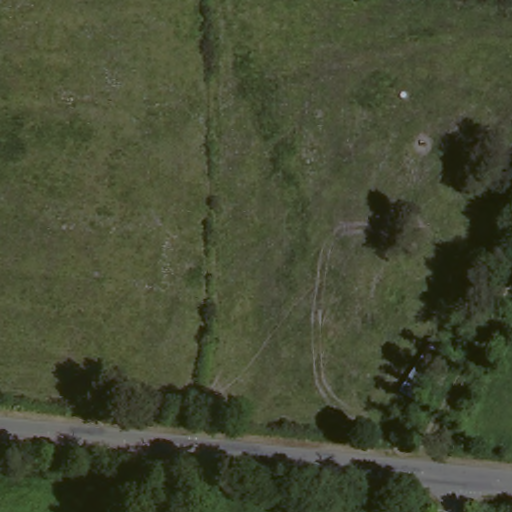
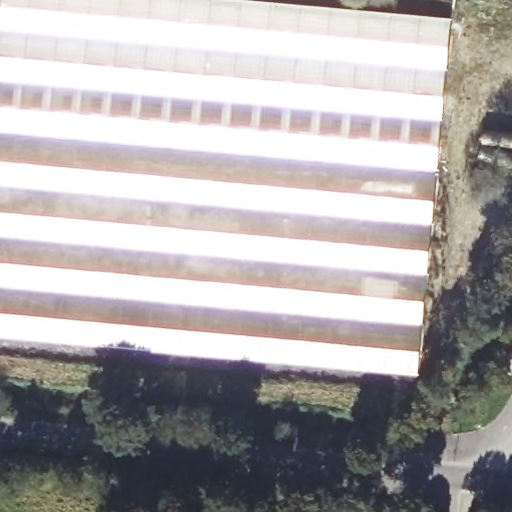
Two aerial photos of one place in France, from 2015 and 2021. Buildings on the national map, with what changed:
new [(418,370),(0,329),(0,8),(1,0),(269,0),(450,17),(418,370)]

